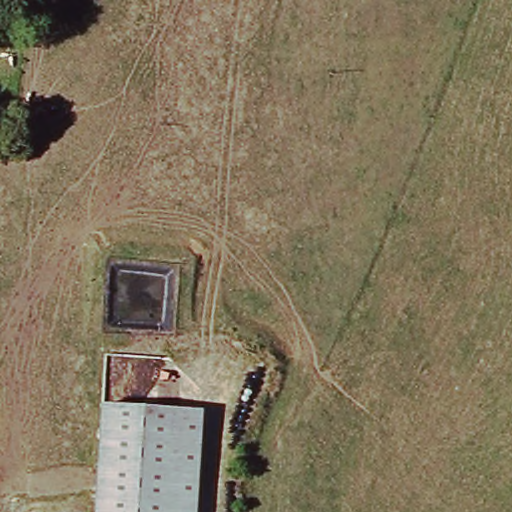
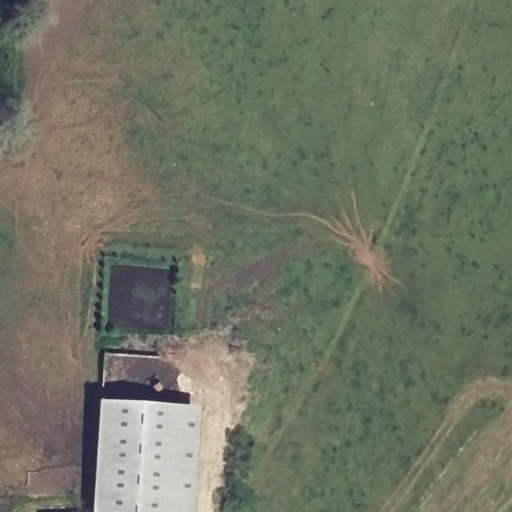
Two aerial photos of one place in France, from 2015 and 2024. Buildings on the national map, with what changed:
unchanged [(199,409),(194,512),(95,512),(101,402),(199,409)]

